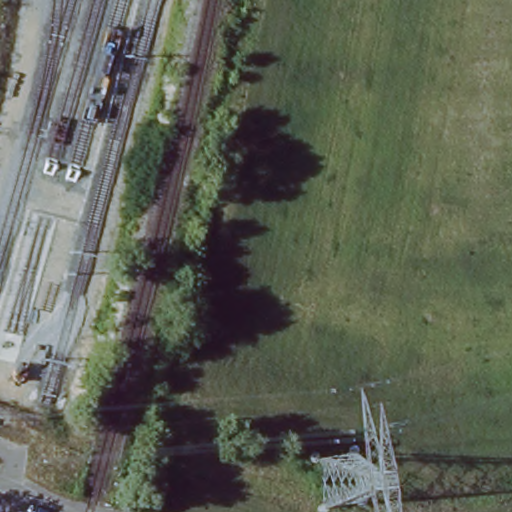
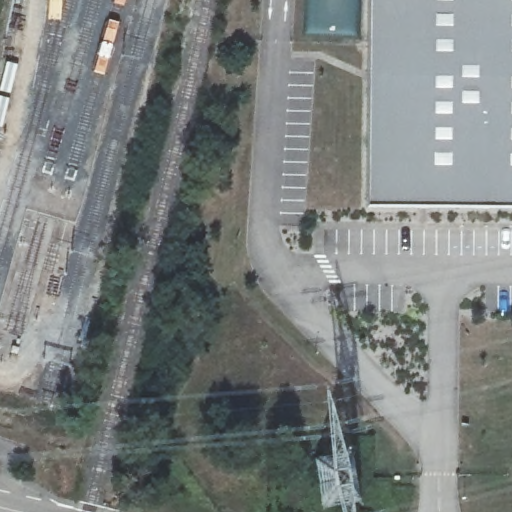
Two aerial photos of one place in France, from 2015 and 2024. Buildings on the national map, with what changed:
new [(512,209),(365,206),(368,0),(512,0),(512,209)]

